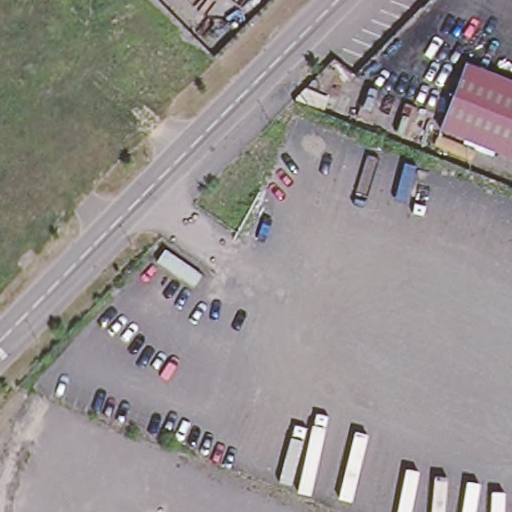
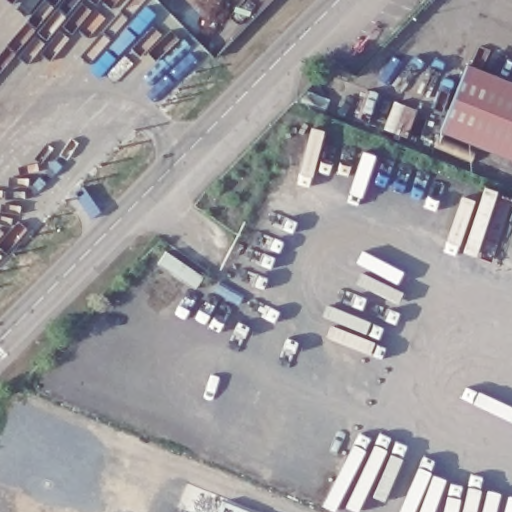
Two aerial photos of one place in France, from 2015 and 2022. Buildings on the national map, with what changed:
unchanged [(442,125),(459,84),(469,60),(500,72),(512,77),(512,152),(442,125)]

